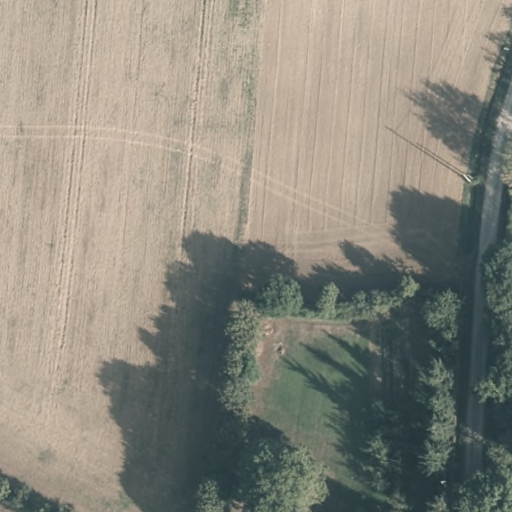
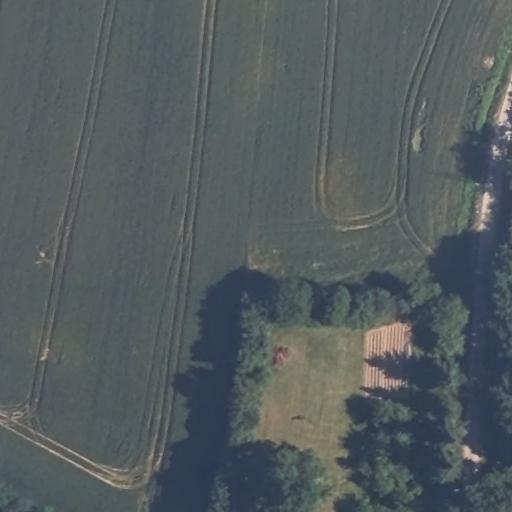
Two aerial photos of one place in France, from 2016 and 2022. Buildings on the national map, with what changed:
[]

